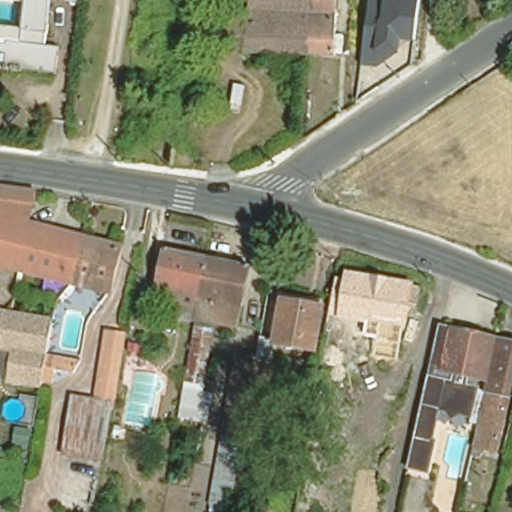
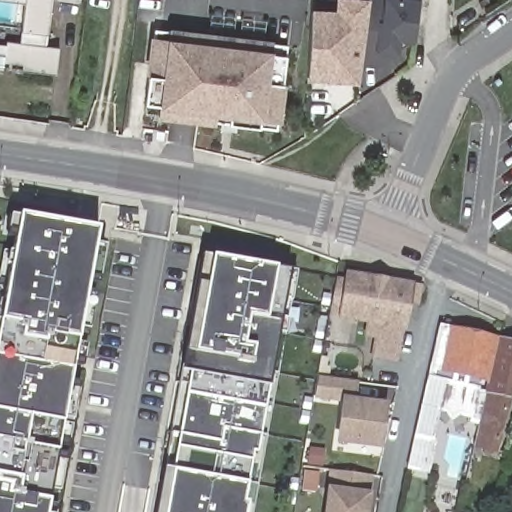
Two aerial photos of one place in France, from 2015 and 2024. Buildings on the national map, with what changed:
unchanged [(4,36),(17,37),(21,0),(46,0),(42,28),(36,29),(35,40),(54,42),(52,70),(17,65),(18,67),(0,65),(0,40),(2,41),(4,36)]
demolished [(222,20),(245,21),(246,0),(310,0),(309,28),(306,27),(305,34),(304,53),(220,48),(222,20)]
demolished [(306,27),(309,28),(310,0),(333,0),(330,54),(304,53),(305,34),(306,27)]
new [(312,11),(340,12),(340,0),(355,0),(370,1),(367,26),(361,65),(358,79),(308,76),(312,11)]
new [(370,1),(370,0),(420,0),(415,42),(402,41),(401,51),(377,68),(361,65),(367,26),(370,1)]
new [(142,114),(153,26),(289,43),(278,130),(142,114)]
demolished [(0,191),(29,195),(27,207),(22,206),(19,217),(24,219),(21,226),(77,244),(66,283),(0,264),(0,191)]
new [(12,268),(19,269),(3,266),(6,252),(22,256),(15,254),(17,240),(9,239),(12,222),(20,224),(22,213),(101,228),(99,240),(108,242),(101,278),(92,277),(87,297),(97,300),(91,337),(81,335),(72,380),(82,382),(75,419),(66,417),(48,512),(0,512),(0,323),(2,323),(12,268)]
demolished [(77,244),(114,255),(102,293),(66,283),(77,244)]
demolished [(197,295),(181,292),(179,304),(172,302),(174,291),(156,286),(165,247),(206,256),(197,295)]
new [(182,371),(205,255),(214,257),(192,372),(182,371)]
demolished [(195,307),(197,295),(206,256),(246,265),(235,325),(213,321),(195,318),(193,317),(195,307)]
new [(192,372),(214,257),(288,271),(292,272),(298,272),(292,302),(282,301),(287,302),(258,452),(249,503),(247,512),(165,512),(192,372)]
unchanged [(347,273),(412,285),(418,286),(416,303),(408,302),(404,330),(401,329),(397,362),(372,358),(376,337),(378,325),(327,316),(334,278),(346,281),(347,273)]
demolished [(268,333),(275,295),(312,301),(306,343),(267,337),(268,333)]
demolished [(52,368),(48,385),(38,383),(37,387),(3,381),(4,377),(0,377),(0,310),(50,319),(42,352),(76,357),(70,372),(52,368)]
unchanged [(455,405),(442,402),(436,432),(441,432),(432,466),(410,461),(442,323),(500,337),(494,367),(496,367),(492,387),(488,402),(485,417),(475,416),(476,410),(464,407),(458,412),(455,405)]
demolished [(98,452),(61,446),(71,396),(91,399),(97,369),(97,367),(104,325),(122,328),(116,372),(104,427),(98,452)]
unchanged [(512,334),(512,394),(501,445),(493,443),(491,457),(477,454),(480,440),(485,417),(488,402),(492,387),(496,367),(503,332),(512,334)]
demolished [(236,435),(238,425),(220,421),(226,393),(226,392),(235,352),(251,355),(252,355),(264,357),(265,357),(258,398),(251,441),(236,437),(236,435)]
new [(382,449),(314,439),(321,392),(322,377),(357,382),(356,397),(389,402),(382,449)]
new [(328,485),(330,468),(372,474),(372,492),(369,512),(325,512),(328,485)]
unchanged [(462,511),(465,512),(462,512),(462,511)]

